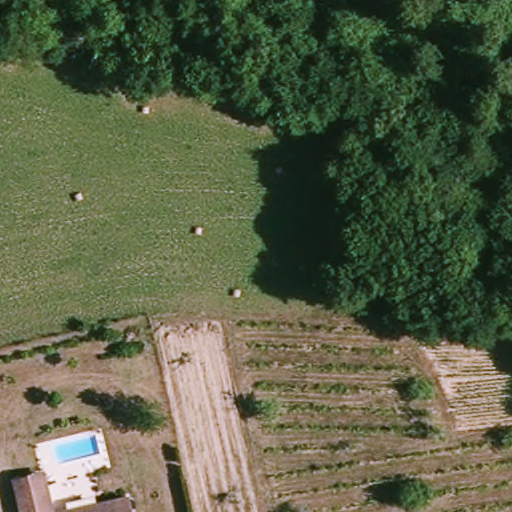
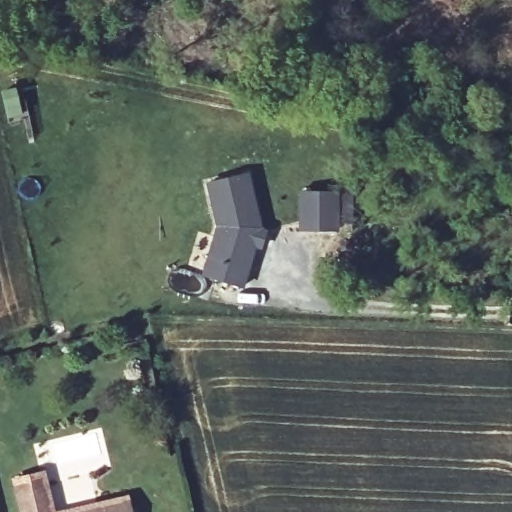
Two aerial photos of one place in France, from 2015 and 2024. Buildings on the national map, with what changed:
new [(248,171),(262,223),(269,226),(263,250),(255,250),(243,288),(201,275),(217,226),(205,181),(248,171)]
new [(342,192),(342,230),(298,229),(298,191),(342,192)]
unchanged [(31,474),(45,470),(48,483),(54,510),(130,495),(133,512),(24,512),(16,477),(31,474)]

